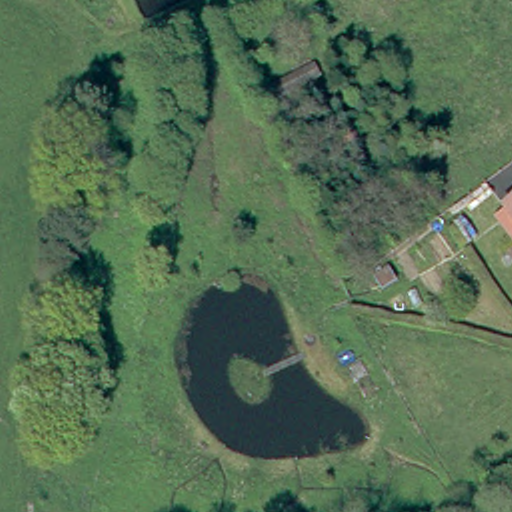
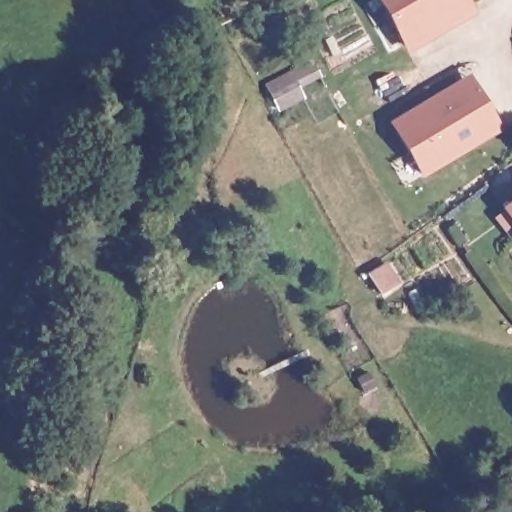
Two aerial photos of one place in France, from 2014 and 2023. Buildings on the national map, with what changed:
new [(475,14),(407,52),(377,0),(467,0),(475,14)]
unchanged [(318,64),(271,87),(264,77),(311,52),(318,64)]
new [(504,129),(423,177),(389,122),(470,72),(504,129)]
unchanged [(512,194),(512,217),(502,201),(512,194)]

